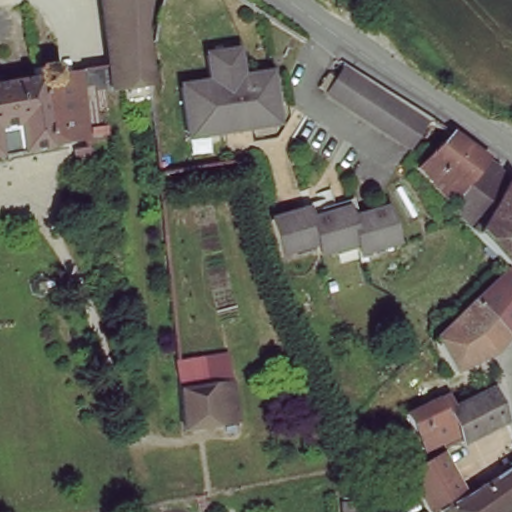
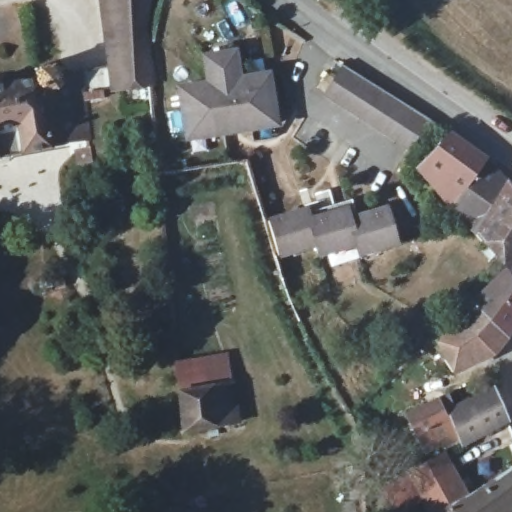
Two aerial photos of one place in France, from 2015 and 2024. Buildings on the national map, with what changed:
unchanged [(101,0),(147,0),(145,12),(145,14),(143,20),(142,25),(144,44),(145,62),(148,87),(144,87),(115,89),(101,0)]
unchanged [(188,142),(181,91),(210,86),(206,59),(237,55),(241,82),(270,79),(278,129),(239,135),(227,137),(188,142)]
unchanged [(33,66),(54,63),(69,140),(0,152),(0,82),(35,75),(33,66)]
unchanged [(430,121),(415,142),(333,88),(327,98),(319,92),(328,78),(336,83),(348,65),(430,121)]
unchanged [(74,76),(101,72),(104,88),(77,93),(74,76)]
unchanged [(448,191),(423,163),(456,127),(490,152),(454,197),(448,191)]
unchanged [(490,152),(500,159),(512,175),(512,177),(482,228),(454,197),(490,152)]
unchanged [(512,261),(510,258),(506,254),(482,228),(512,177),(512,261)]
unchanged [(349,219),(386,210),(397,244),(358,255),(355,245),(318,255),(314,245),(278,255),(267,221),(307,210),(310,219),(346,210),(349,219)]
unchanged [(460,366),(442,333),(512,263),(512,331),(501,347),(460,366)]
unchanged [(233,381),(239,422),(185,432),(183,405),(181,389),(233,381)]
unchanged [(455,430),(449,414),(450,413),(477,401),(490,395),(504,426),(462,448),(460,444),(455,430)]
unchanged [(413,413),(434,403),(443,399),(444,398),(450,413),(449,414),(455,430),(460,444),(451,448),(447,444),(423,455),(404,418),(413,413)]
unchanged [(441,512),(425,512),(405,477),(439,459),(462,500),(441,512)]
unchanged [(512,475),(512,509),(507,512),(451,512),(479,495),(492,485),(497,483),(512,475)]

